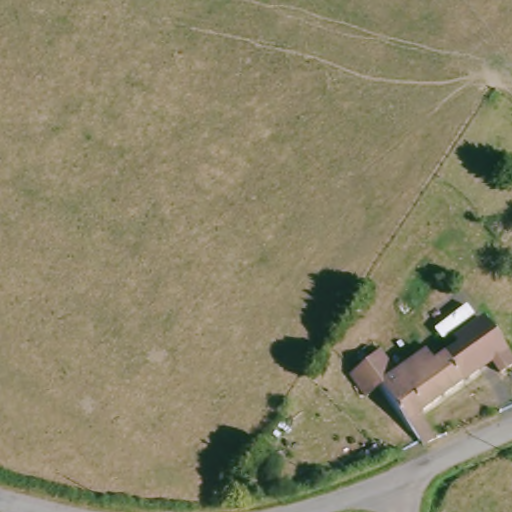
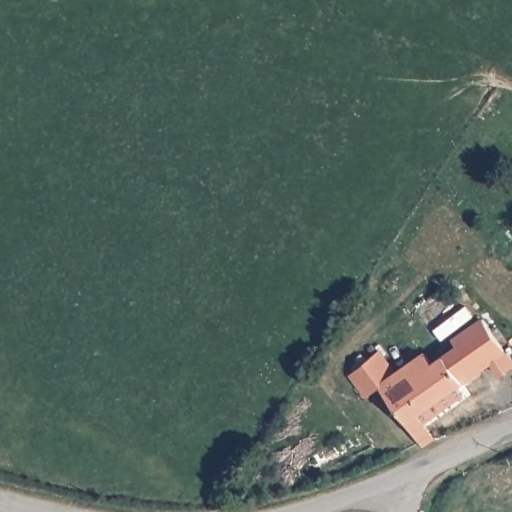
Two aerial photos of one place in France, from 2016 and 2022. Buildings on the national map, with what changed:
unchanged [(461,342),(457,337),(486,319),(512,355),(512,369),(506,372),(497,362),(425,411),(444,438),(427,445),(385,386),(371,396),(357,375),(382,351),(397,372),(428,352),(436,360),(461,342)]

